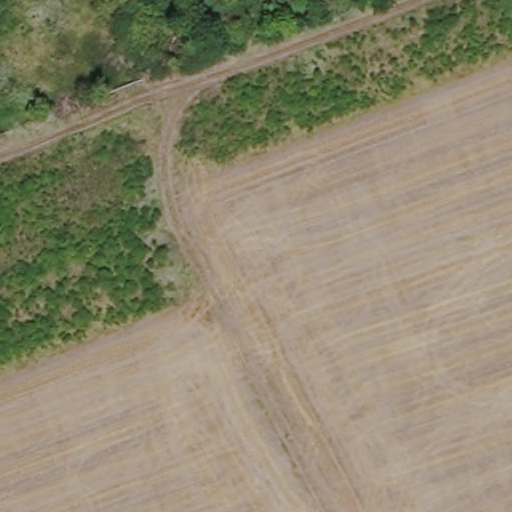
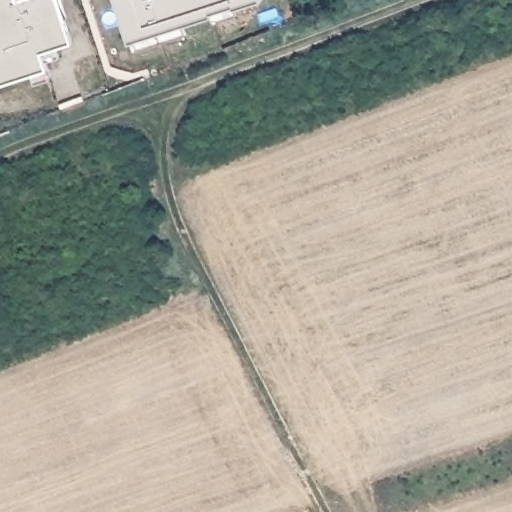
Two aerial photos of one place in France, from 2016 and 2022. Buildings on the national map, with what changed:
new [(46,69),(0,84),(0,0),(59,0),(71,42),(41,50),(46,69)]
new [(123,47),(107,0),(261,0),(123,47)]

